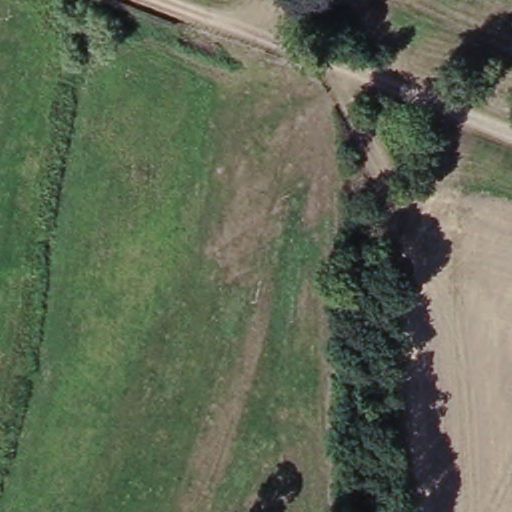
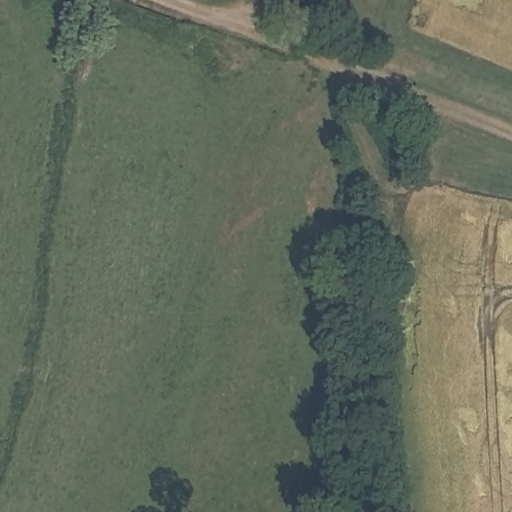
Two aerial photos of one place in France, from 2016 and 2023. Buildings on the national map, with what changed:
[]

